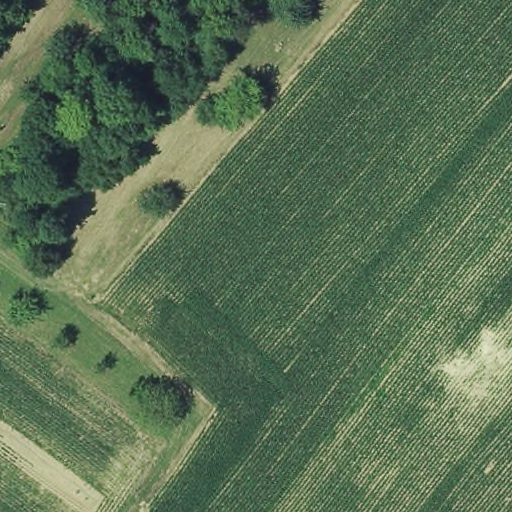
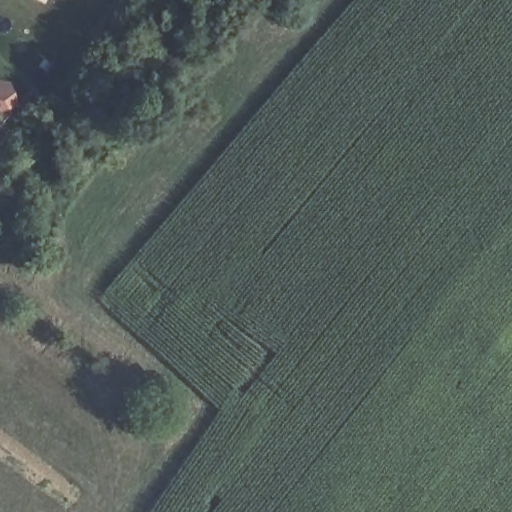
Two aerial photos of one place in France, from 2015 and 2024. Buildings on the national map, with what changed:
new [(46,7),(35,0),(51,0),(46,7)]
new [(16,81),(10,130),(0,127),(0,78),(16,81)]

